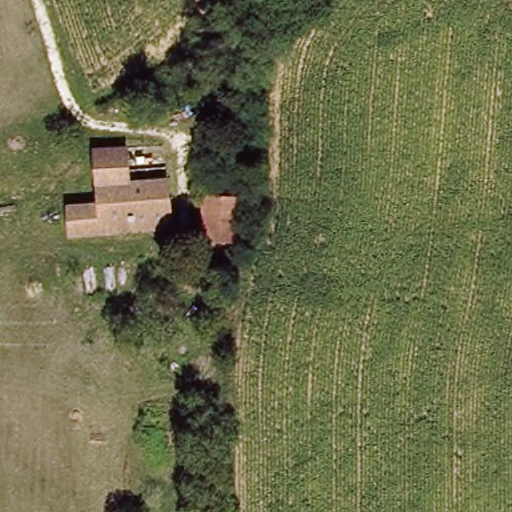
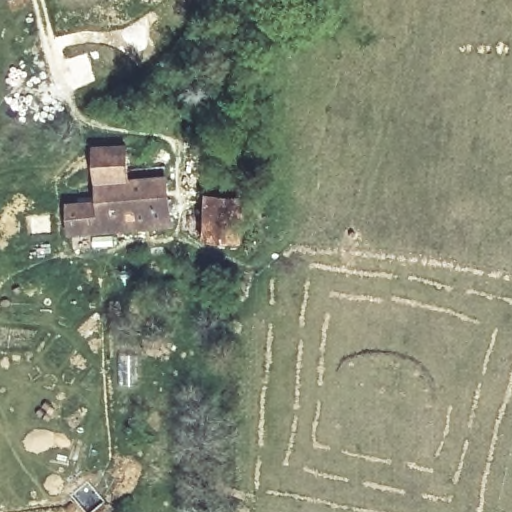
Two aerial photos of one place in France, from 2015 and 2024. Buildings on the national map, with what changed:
unchanged [(177,225),(78,238),(74,213),(105,210),(101,181),(97,157),(104,155),(131,151),(133,175),(135,186),(171,181),(177,225)]
unchanged [(248,240),(247,244),(220,240),(229,196),(257,202),(248,240)]

